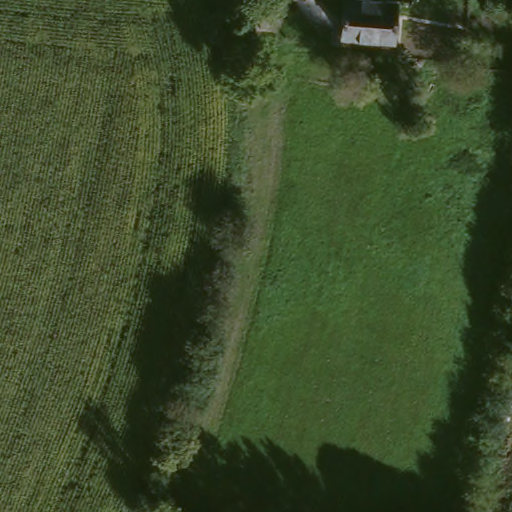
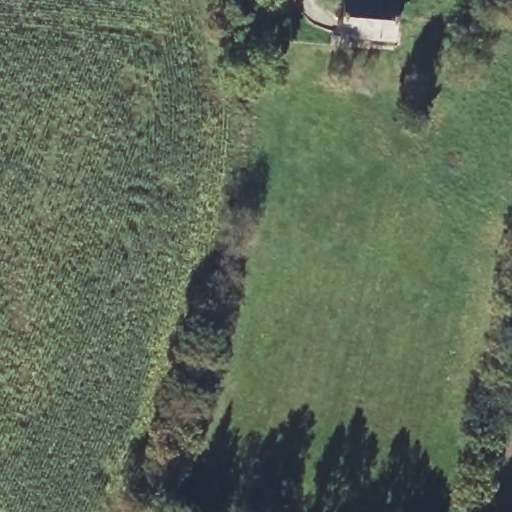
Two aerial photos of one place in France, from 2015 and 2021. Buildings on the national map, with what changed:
unchanged [(395,6),(391,44),(340,38),(345,1),(395,6)]

